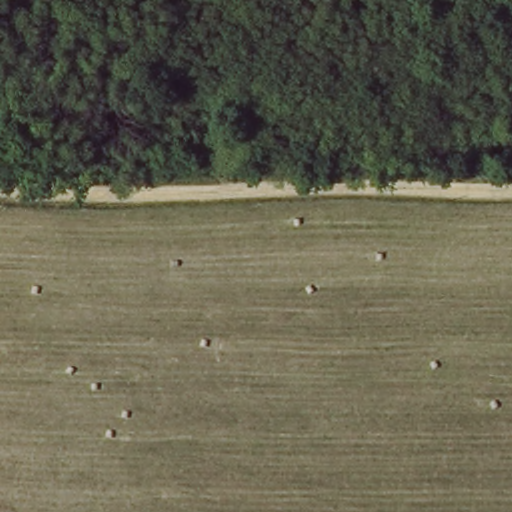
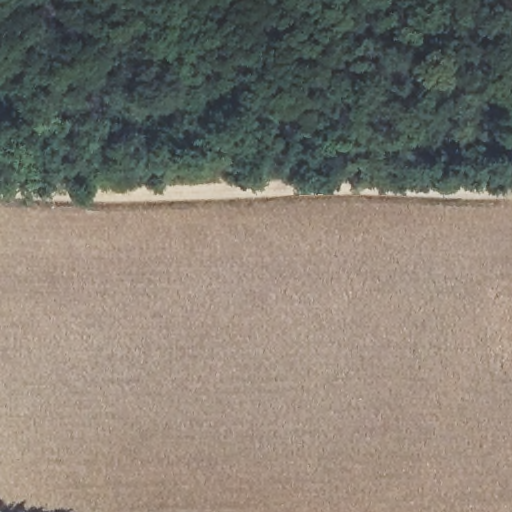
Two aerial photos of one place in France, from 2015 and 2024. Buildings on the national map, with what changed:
[]

